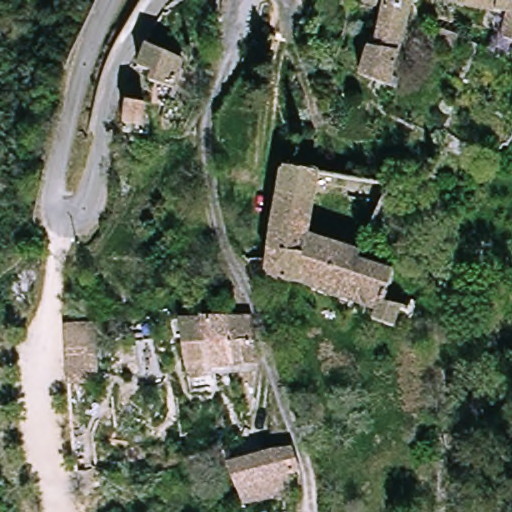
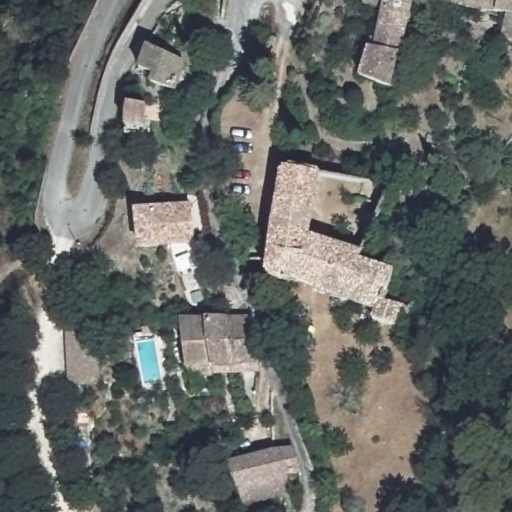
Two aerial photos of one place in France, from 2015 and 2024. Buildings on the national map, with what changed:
unchanged [(406,0),(385,87),(356,79),(365,49),(368,50),(380,16),(359,6),(361,0),(406,0)]
unchanged [(495,45),(502,16),(433,0),(512,0),(512,49),(509,49),(495,45)]
unchanged [(171,90),(149,83),(153,72),(136,66),(142,46),(183,60),(171,90)]
unchanged [(150,106),(147,121),(145,131),(121,128),(125,104),(150,106)]
unchanged [(314,197),(278,191),(283,162),(320,168),(314,197)]
unchanged [(314,197),(305,236),(363,250),(362,256),(393,263),(386,297),(411,302),(410,310),(395,307),(391,319),(371,313),(373,306),(325,286),(293,276),(263,270),(273,222),(278,191),(314,197)]
new [(190,202),(195,242),(140,249),(134,209),(190,202)]
unchanged [(213,372),(212,367),(208,325),(247,323),(254,367),(213,372)]
unchanged [(180,368),(179,325),(208,325),(212,367),(201,368),(180,368)]
unchanged [(68,330),(98,330),(95,386),(70,386),(68,330)]
unchanged [(267,496),(240,505),(226,461),(233,461),(263,451),(283,449),(289,447),(296,470),(279,475),(283,491),(267,496)]

